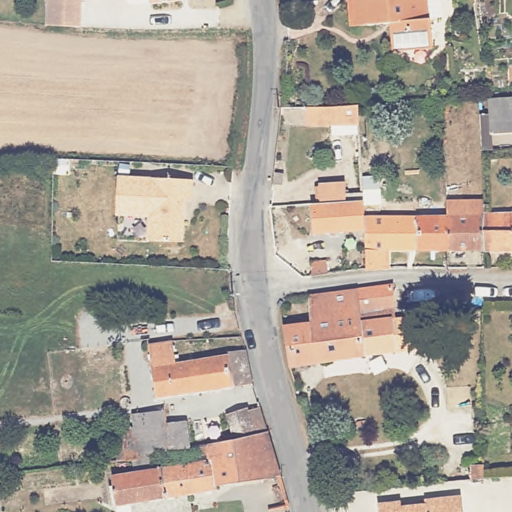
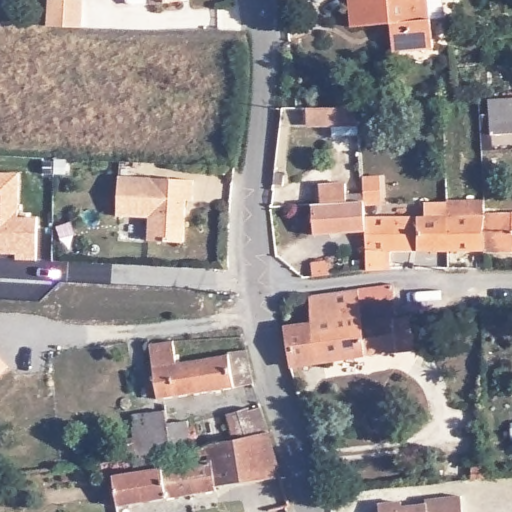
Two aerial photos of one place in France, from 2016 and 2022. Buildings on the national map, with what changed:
unchanged [(81,0),(81,29),(47,29),(48,0),(81,0)]
unchanged [(182,2),(150,5),(150,0),(182,0),(182,2)]
unchanged [(426,23),(428,23),(429,51),(388,53),(387,27),(349,28),(349,0),(425,0),(426,23)]
unchanged [(489,96),(512,95),(512,132),(489,133),(489,96)]
unchanged [(361,130),(309,131),(308,114),(361,111),(361,130)]
new [(20,171),(18,215),(38,215),(36,258),(17,257),(17,252),(0,251),(0,171),(20,171)]
unchanged [(192,201),(185,201),(183,244),(148,242),(148,219),(116,217),(118,179),(193,181),(192,201)]
unchanged [(317,184),(344,184),(345,194),(362,194),(362,200),(318,202),(317,184)]
unchanged [(487,214),(487,210),(512,210),(512,248),(487,248),(487,214)]
unchanged [(353,213),(355,228),(317,230),(315,215),(353,213)]
unchanged [(385,248),(386,266),(368,267),(367,213),(451,214),(451,238),(451,248),(385,248)]
unchanged [(451,238),(451,214),(487,214),(487,248),(451,248),(451,238)]
unchanged [(320,275),(303,276),(302,261),(319,260),(320,275)]
unchanged [(423,350),(397,354),(290,368),(287,329),(315,325),(311,297),(360,290),(394,285),(397,308),(369,313),(370,321),(392,318),(418,315),(423,350)]
unchanged [(153,342),(173,340),(177,362),(228,355),(228,352),(246,350),(255,382),(165,399),(159,400),(148,345),(153,343),(153,342)]
new [(11,365),(0,375),(0,354),(11,365)]
unchanged [(134,470),(164,465),(215,458),(214,453),(206,455),(204,445),(233,439),(231,432),(238,430),(233,412),(256,407),(257,410),(267,406),(274,431),(288,475),(221,485),(221,489),(123,503),(117,472),(134,470)]
unchanged [(131,428),(132,417),(166,411),(170,424),(188,422),(189,448),(163,455),(164,465),(134,470),(135,460),(116,461),(113,435),(131,428)]
unchanged [(401,501),(401,506),(423,505),(423,500),(462,498),(463,512),(379,512),(378,502),(401,501)]

